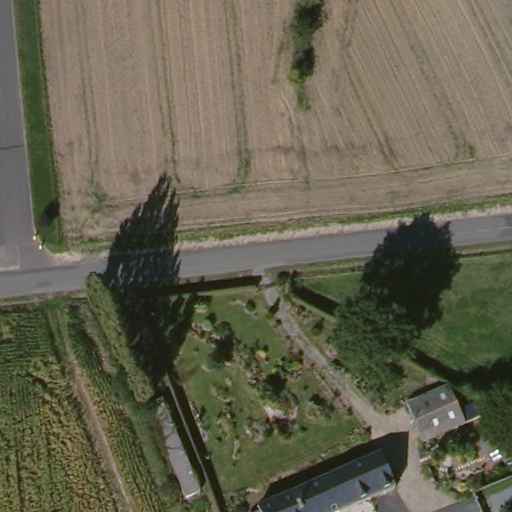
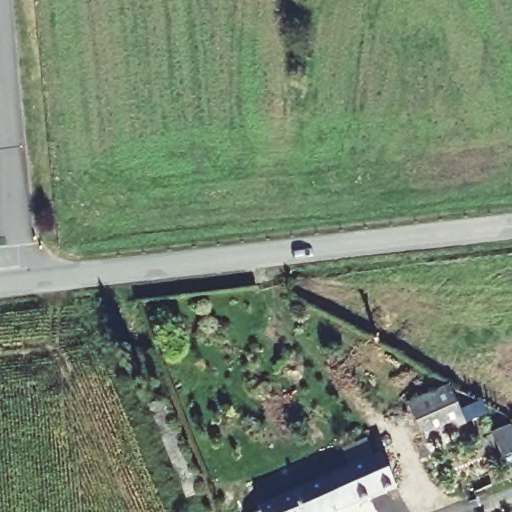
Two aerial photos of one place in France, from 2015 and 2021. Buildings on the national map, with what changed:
unchanged [(459,430),(421,446),(404,408),(446,392),(459,430)]
unchanged [(199,494),(186,502),(149,408),(162,403),(199,494)]
new [(512,434),(512,453),(499,458),(489,434),(509,426),(512,434)]
unchanged [(398,489),(340,512),(252,512),(261,507),(385,455),(398,489)]

